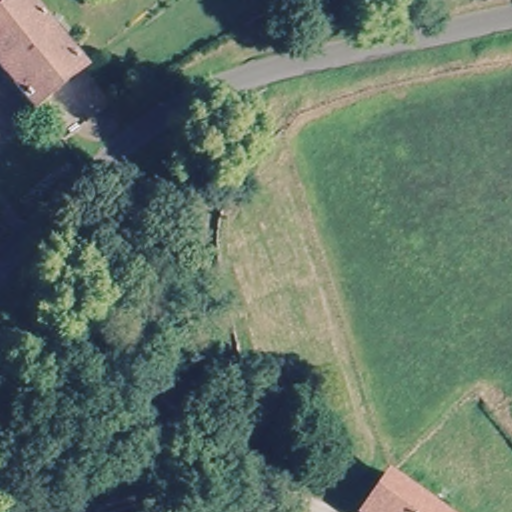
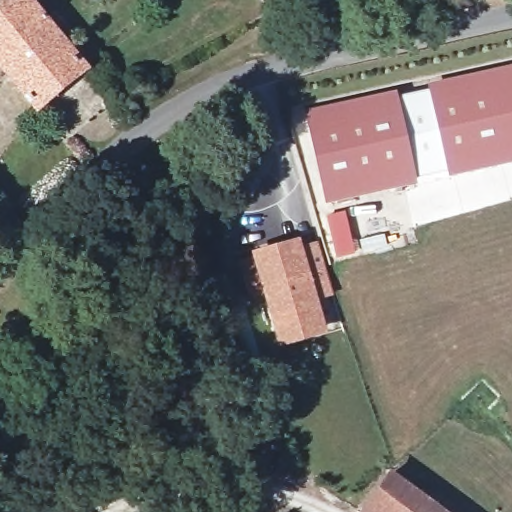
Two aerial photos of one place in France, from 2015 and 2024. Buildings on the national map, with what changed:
unchanged [(36,106),(0,61),(0,13),(17,0),(33,0),(88,66),(36,106)]
new [(325,204),(304,111),(396,91),(397,95),(428,88),(427,84),(512,66),(512,164),(448,177),(447,171),(416,178),(417,184),(325,204)]
new [(345,210),(356,253),(336,258),(325,215),(345,210)]
new [(302,244),(318,240),(334,295),(319,300),(327,332),(279,347),(250,250),(299,236),(302,244)]
new [(157,429),(146,410),(159,403),(156,401),(179,388),(178,385),(191,377),(205,401),(157,429)]
unchanged [(437,512),(366,512),(389,477),(437,512)]

